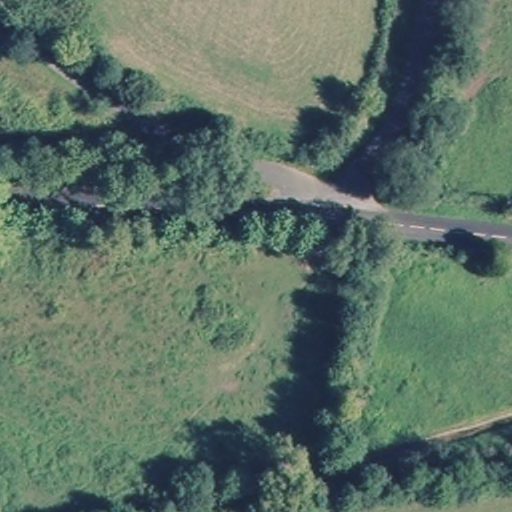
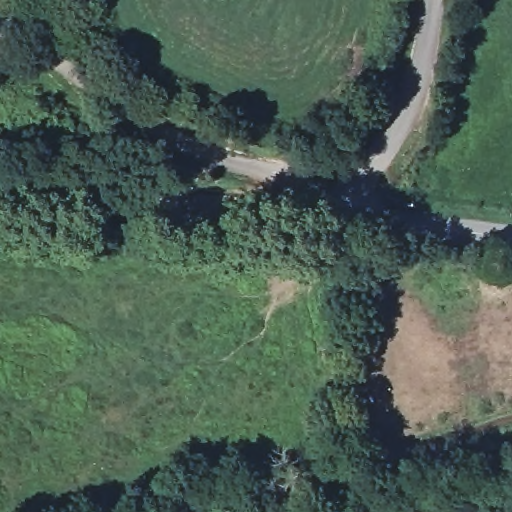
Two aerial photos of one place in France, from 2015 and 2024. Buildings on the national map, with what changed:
[]

